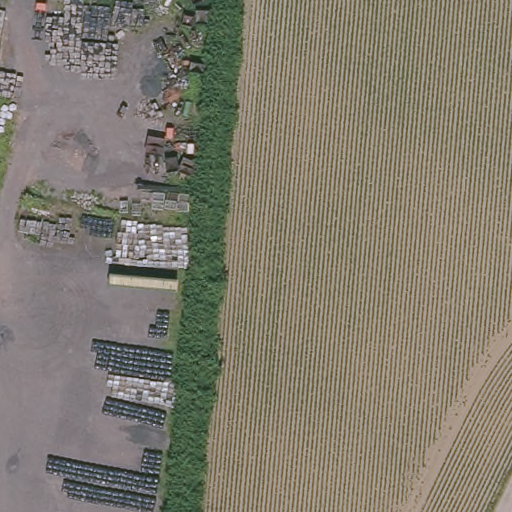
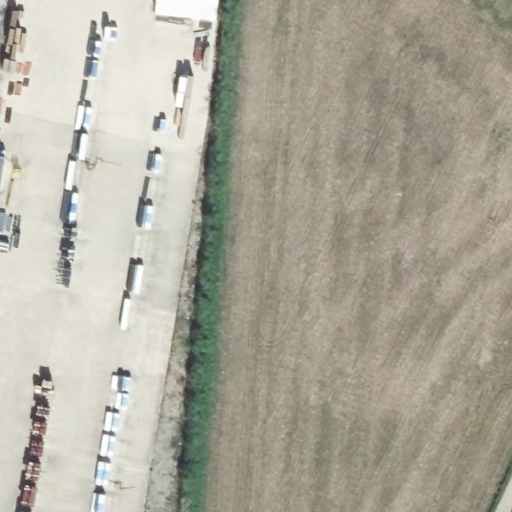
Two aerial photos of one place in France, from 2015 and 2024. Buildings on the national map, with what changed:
new [(156,14),(158,0),(219,0),(218,20),(156,14)]

